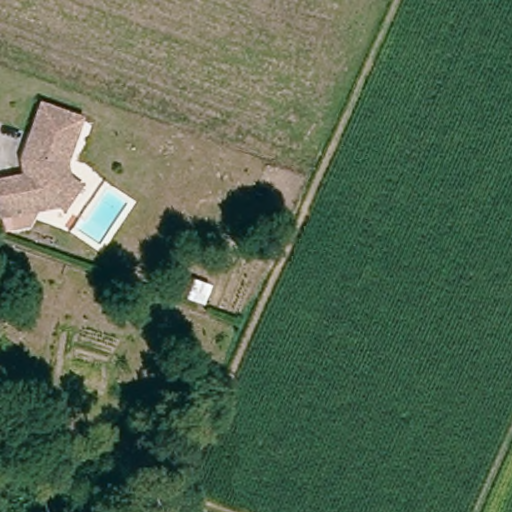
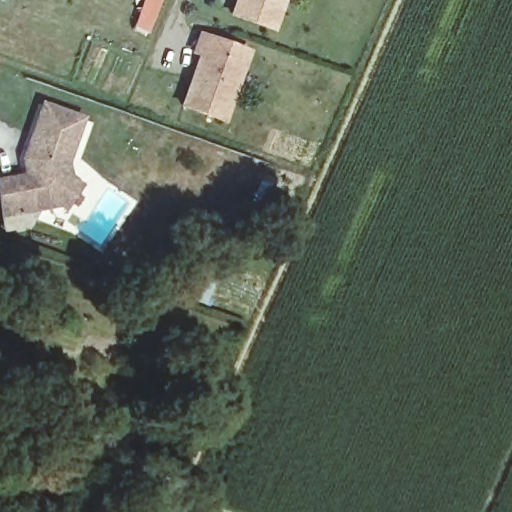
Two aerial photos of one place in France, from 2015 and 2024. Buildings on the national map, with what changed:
new [(273,23),(233,7),(235,0),(281,0),(273,23)]
new [(197,61),(201,47),(196,45),(202,28),(246,45),(221,112),(183,98),(193,72),(197,61)]
unchanged [(23,177),(21,168),(20,160),(23,152),(39,110),(41,105),(46,107),(79,120),(62,165),(65,181),(75,189),(60,210),(56,207),(30,211),(0,217),(0,181),(23,177)]

